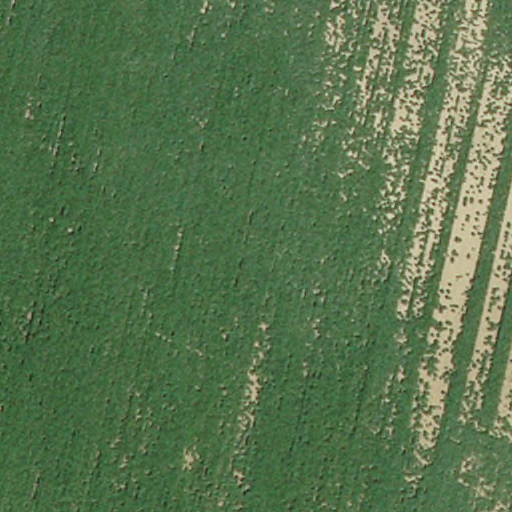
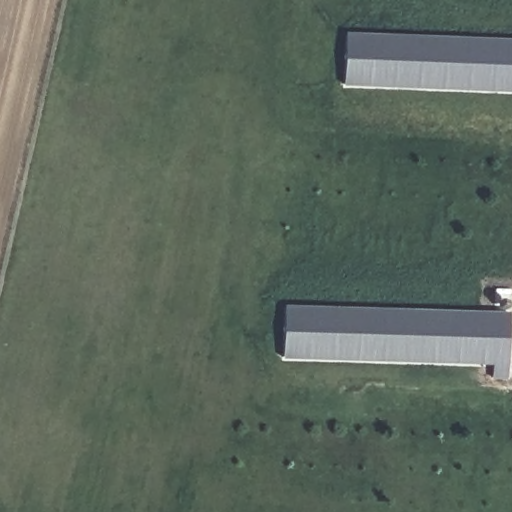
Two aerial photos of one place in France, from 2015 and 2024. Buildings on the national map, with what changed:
new [(345,31),(512,38),(512,91),(342,84),(345,31)]
new [(282,357),(283,304),(509,312),(507,377),(491,377),(492,363),(282,357)]

